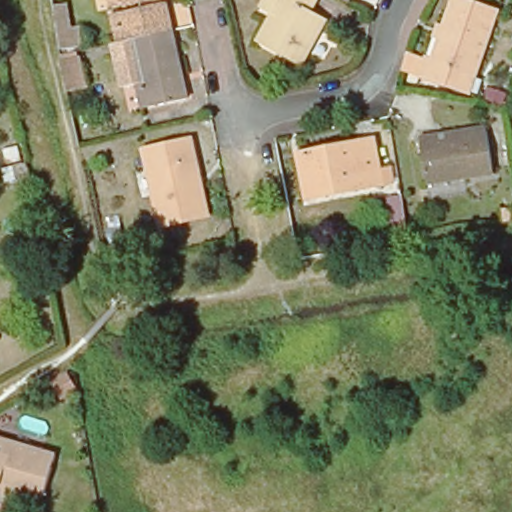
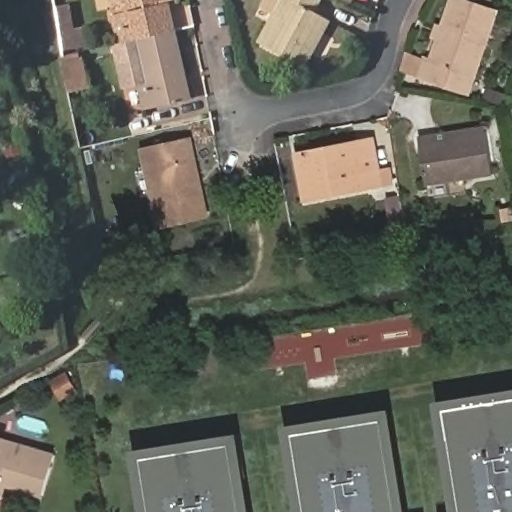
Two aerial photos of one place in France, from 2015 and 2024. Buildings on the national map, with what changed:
unchanged [(109,0),(150,0),(111,9),(109,0)]
unchanged [(279,0),(313,0),(307,12),(323,21),(297,68),(256,43),(279,0)]
unchanged [(337,0),(345,0),(344,4),(339,1),(337,0)]
unchanged [(457,88),(427,78),(433,62),(437,63),(460,0),(467,0),(501,12),(480,77),(474,94),(457,88)]
unchanged [(114,33),(140,27),(136,12),(163,6),(169,34),(132,42),(117,45),(114,33)]
unchanged [(135,87),(142,86),(132,42),(169,34),(184,102),(147,110),(140,111),(135,87)]
unchanged [(86,60),(93,89),(75,93),(68,63),(86,60)]
unchanged [(427,196),(420,147),(441,144),(486,137),(487,142),(493,185),(427,196)]
unchanged [(157,172),(151,173),(147,155),(196,144),(200,162),(197,163),(209,219),(167,228),(157,172)]
unchanged [(298,161),(372,146),(381,190),(307,205),(298,161)]
new [(512,389),(512,512),(454,512),(437,402),(512,389)]
new [(393,408),(409,512),(297,512),(283,426),(393,408)]
new [(241,433),(253,512),(142,512),(133,451),(241,433)]
unchanged [(0,496),(0,444),(1,441),(62,460),(50,501),(15,490),(11,500),(0,496)]

